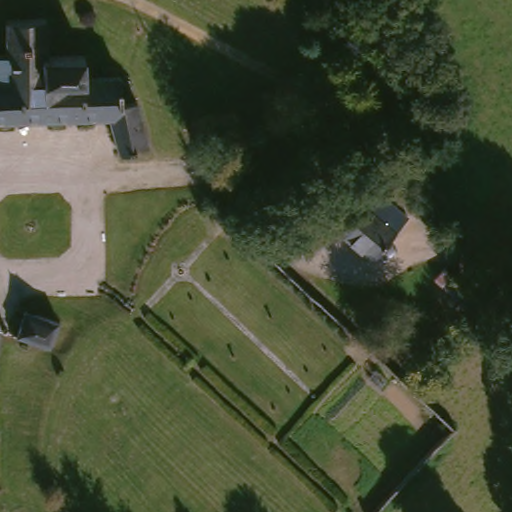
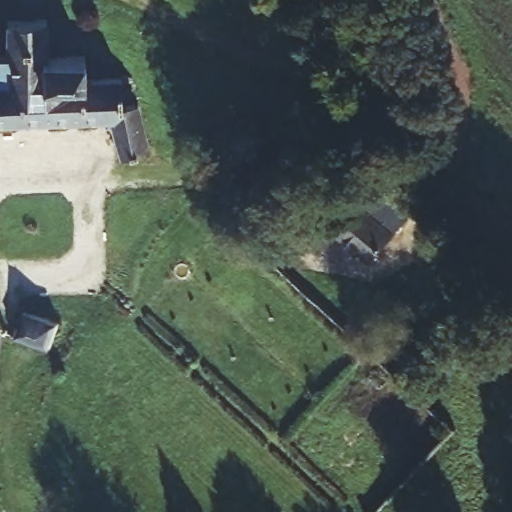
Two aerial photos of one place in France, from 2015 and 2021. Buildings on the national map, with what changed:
unchanged [(3,25),(41,24),(44,57),(81,56),(83,77),(116,75),(116,89),(124,89),(124,102),(136,102),(145,147),(113,156),(103,118),(0,120),(0,59),(4,59),(3,25)]
unchanged [(368,261),(335,234),(370,189),(403,218),(368,261)]
unchanged [(58,329),(46,358),(13,344),(23,317),(58,329)]

